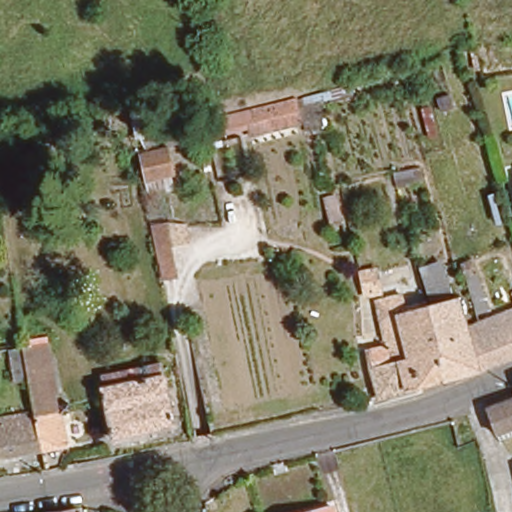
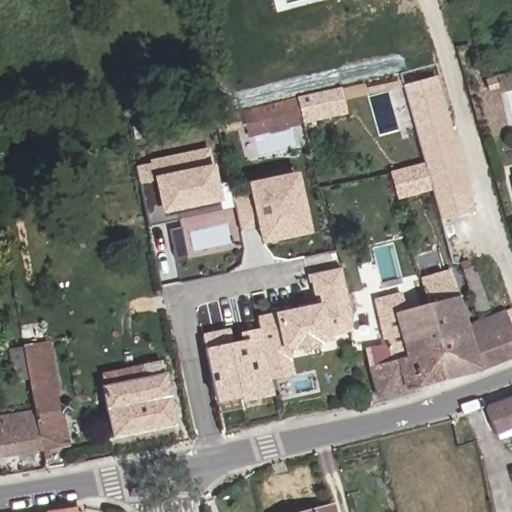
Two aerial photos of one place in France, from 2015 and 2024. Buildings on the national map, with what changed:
new [(431,191),(397,201),(388,173),(424,162),(403,85),(436,76),(474,212),(440,222),(431,191)]
new [(246,138),(240,110),(341,87),(347,115),(246,138)]
new [(148,225),(136,166),(151,164),(150,159),(209,147),(212,165),(214,165),(218,182),(227,181),(233,207),(221,210),(148,225)]
new [(249,192),(248,182),(296,172),(309,233),(260,244),(256,228),(242,232),(233,197),(249,192)]
demolished [(269,258),(268,252),(273,251),(274,257),(269,258)]
unchanged [(475,274),(468,276),(464,265),(471,263),(475,274)]
new [(329,335),(330,341),(287,349),(293,375),(269,379),(272,396),(259,398),(240,401),(239,398),(215,403),(203,348),(202,334),(230,327),(231,343),(239,341),(239,332),(259,328),(257,314),(273,312),(312,303),(307,273),(340,267),(350,331),(329,335)]
unchanged [(369,366),(391,360),(379,315),(382,314),(380,306),(388,303),(386,295),(403,291),(409,309),(421,306),(439,376),(376,395),(369,366)]
unchanged [(478,365),(439,376),(421,306),(426,304),(428,303),(460,295),(467,323),(478,365)]
unchanged [(467,323),(479,319),(508,312),(512,322),(512,348),(478,365),(467,323)]
unchanged [(170,416),(109,428),(100,377),(98,365),(140,358),(160,353),(170,416)]
unchanged [(56,394),(68,392),(69,401),(61,403),(67,434),(40,439),(33,402),(31,391),(14,394),(9,363),(25,360),(27,372),(50,368),(56,394)]
unchanged [(512,418),(492,425),(483,400),(512,390),(512,418)]
unchanged [(40,439),(44,458),(25,461),(21,442),(0,446),(0,409),(33,402),(40,439)]
unchanged [(336,512),(295,512),(333,501),(336,512)]
unchanged [(46,512),(46,510),(77,504),(79,505),(80,512),(46,512)]

